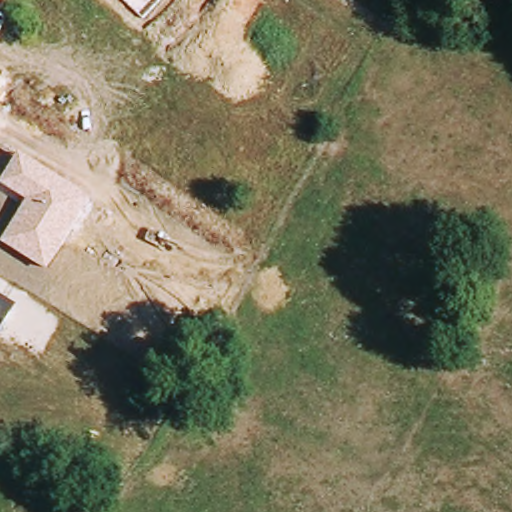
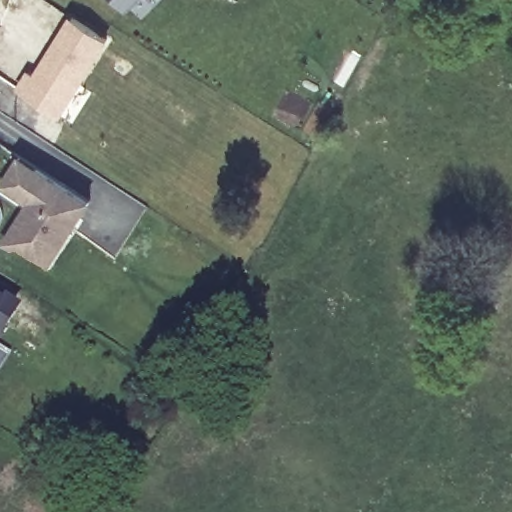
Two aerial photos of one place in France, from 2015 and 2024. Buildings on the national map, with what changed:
new [(132,8),(124,0),(140,0),(132,8)]
new [(35,73),(72,15),(110,39),(61,115),(18,87),(29,70),(35,73)]
unchanged [(93,198),(46,271),(1,242),(27,201),(1,183),(21,154),(93,198)]
unchanged [(17,307),(0,333),(0,296),(17,307)]

